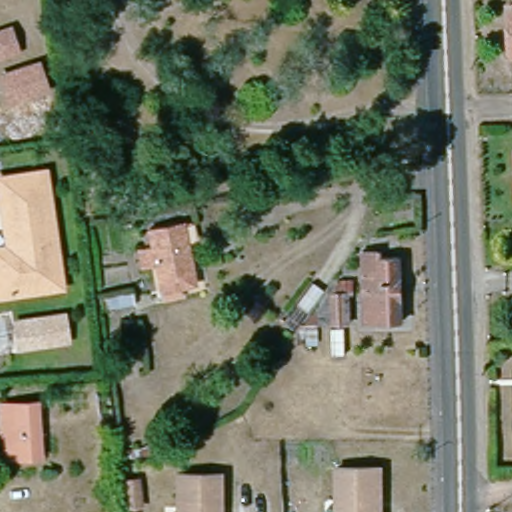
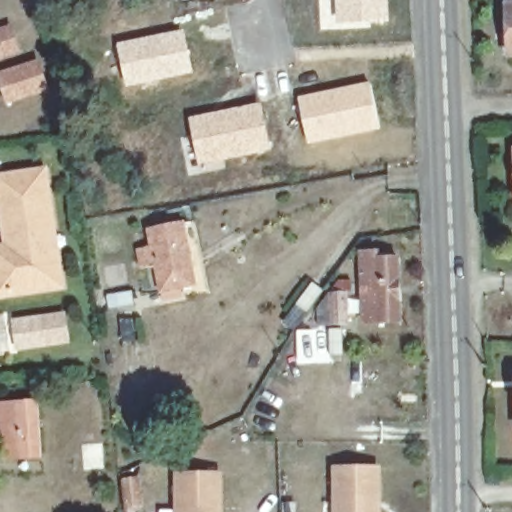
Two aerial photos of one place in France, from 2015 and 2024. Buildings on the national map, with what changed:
new [(337,0),(388,0),(389,22),(338,24),(337,0)]
unchanged [(0,30),(10,27),(16,46),(0,52),(0,30)]
new [(193,74),(126,88),(116,45),(185,30),(193,74)]
unchanged [(6,101),(0,83),(0,80),(52,62),(56,86),(6,101)]
new [(369,82),(380,130),(308,145),(298,98),(369,82)]
new [(272,150),(200,166),(189,117),(261,102),(272,150)]
unchanged [(511,147),(512,147),(512,158),(511,147)]
unchanged [(0,263),(9,262),(1,183),(46,177),(61,289),(0,299),(0,263)]
unchanged [(156,277),(144,280),(140,261),(152,258),(147,231),(190,218),(207,279),(158,291),(156,277)]
unchanged [(377,322),(376,296),(362,296),(363,251),(384,252),(384,258),(398,259),(398,322),(377,322)]
unchanged [(327,291),(334,290),(336,279),(344,282),(347,326),(341,327),(343,354),(327,355),(323,332),(316,335),(314,357),(300,354),(299,326),(281,320),(310,281),(327,291)]
unchanged [(14,319),(41,317),(67,314),(70,342),(43,345),(18,349),(14,319)]
unchanged [(6,453),(3,402),(35,401),(38,453),(6,453)]
unchanged [(379,467),(379,512),(335,512),(335,466),(379,467)]
unchanged [(220,478),(220,512),(177,512),(177,477),(220,478)]

